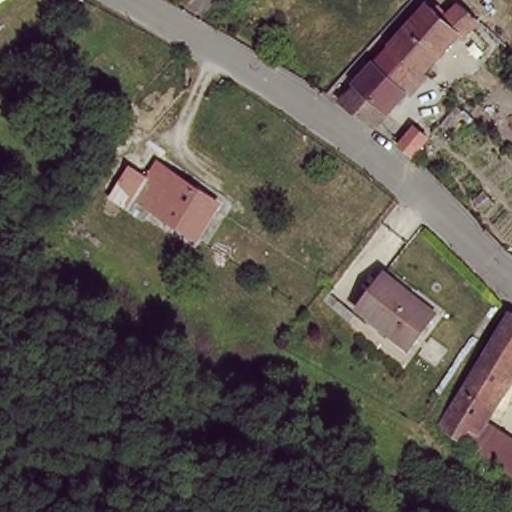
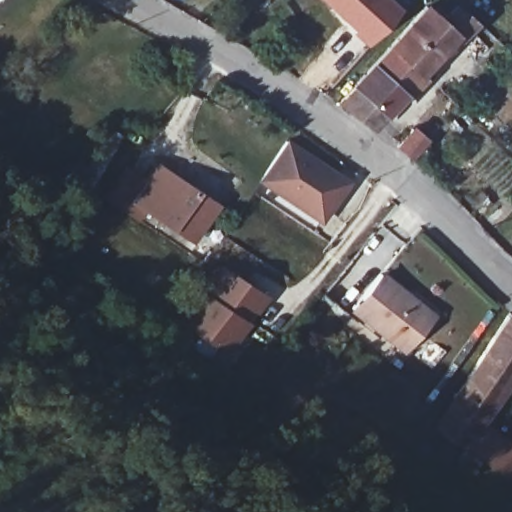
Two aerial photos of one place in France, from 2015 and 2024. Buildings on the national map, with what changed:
new [(392,0),(401,8),(366,45),(350,32),(353,28),(321,0),(392,0)]
unchanged [(403,59),(388,46),(385,43),(418,6),(434,19),(450,3),(471,23),(456,39),(453,37),(418,74),(403,59)]
unchanged [(368,128),(341,108),(331,101),(385,43),(388,46),(403,59),(418,74),(368,128)]
unchanged [(407,124),(420,135),(406,151),(392,140),(407,124)]
new [(287,138),(352,180),(323,225),(259,183),(287,138)]
new [(127,197),(137,205),(150,214),(142,225),(102,198),(123,164),(139,176),(127,197)]
unchanged [(188,238),(150,214),(137,205),(127,197),(139,176),(146,164),(161,173),(164,173),(212,204),(188,238)]
new [(259,298),(220,351),(172,316),(213,264),(259,298)]
unchanged [(354,313),(381,277),(410,299),(433,316),(428,322),(406,352),(354,313)]
unchanged [(428,424),(503,312),(512,318),(512,361),(473,418),(457,441),(428,424)]
unchanged [(512,447),(502,466),(457,441),(473,418),(512,439),(512,447)]
unchanged [(512,447),(512,471),(502,466),(512,447)]

